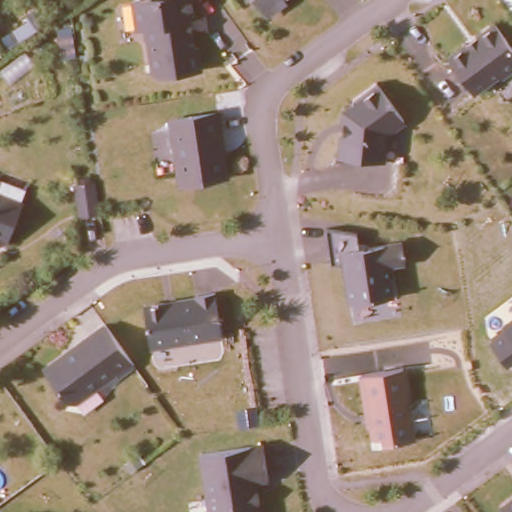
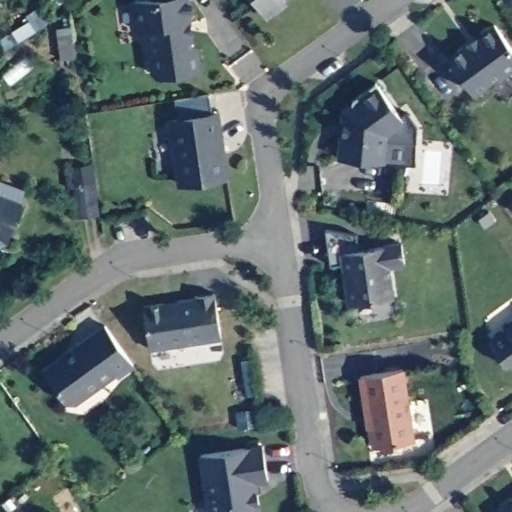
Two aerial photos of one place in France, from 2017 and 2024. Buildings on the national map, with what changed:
unchanged [(204,70),(155,77),(147,28),(138,28),(134,0),(194,0),(204,70)]
unchanged [(271,17),(260,0),(293,0),(271,17)]
unchanged [(450,55),(492,24),(512,53),(512,71),(473,95),(450,55)]
unchanged [(342,110),(379,84),(407,123),(388,138),(385,161),(335,159),(342,110)]
unchanged [(231,179),(181,183),(173,118),(222,112),(231,179)]
unchanged [(1,183),(0,186),(0,183),(1,183)]
unchanged [(23,207),(10,244),(1,248),(0,248),(0,198),(23,207)]
unchanged [(360,244),(402,239),(405,265),(390,268),(395,296),(345,305),(340,263),(330,264),(325,228),(356,233),(360,244)]
unchanged [(224,341),(150,351),(145,306),(220,297),(224,341)]
unchanged [(103,323),(135,366),(75,406),(65,402),(41,368),(103,323)]
unchanged [(512,324),(512,336),(506,328),(512,324)]
unchanged [(418,442),(372,448),(363,376),(408,368),(418,442)]
unchanged [(262,487),(264,512),(210,512),(203,454),(268,446),(270,486),(262,487)]
unchanged [(512,502),(512,512),(505,512),(503,509),(512,502)]

